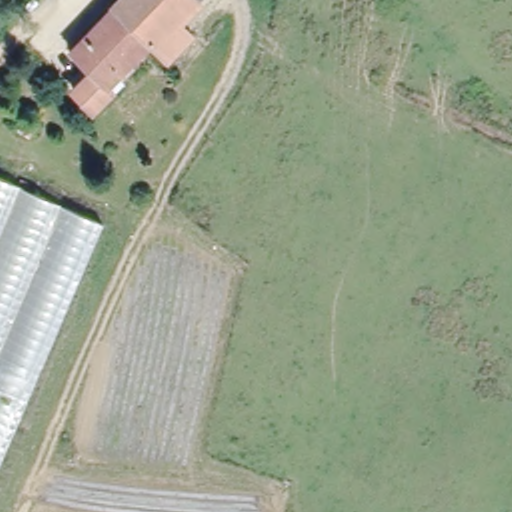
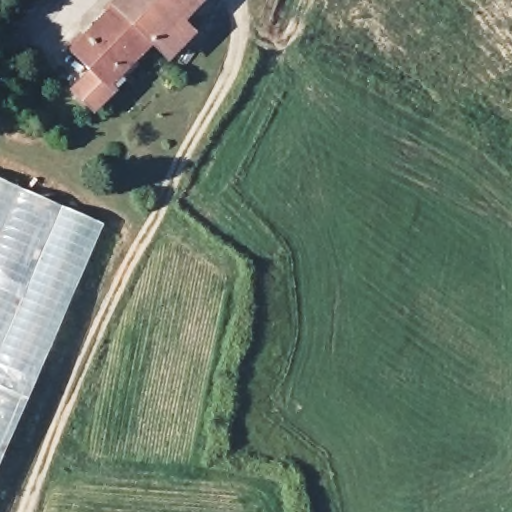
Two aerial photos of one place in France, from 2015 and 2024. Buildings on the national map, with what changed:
unchanged [(71,80),(52,62),(113,0),(185,0),(178,6),(158,27),(173,42),(148,67),(133,52),(89,97),(74,113),(56,95),(71,80)]
unchanged [(0,460),(0,180),(101,224),(0,460)]

